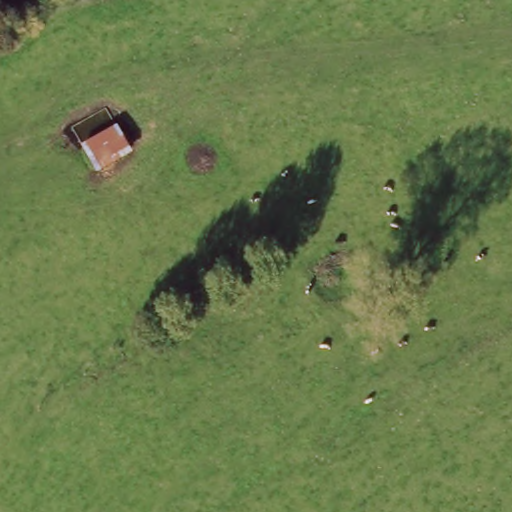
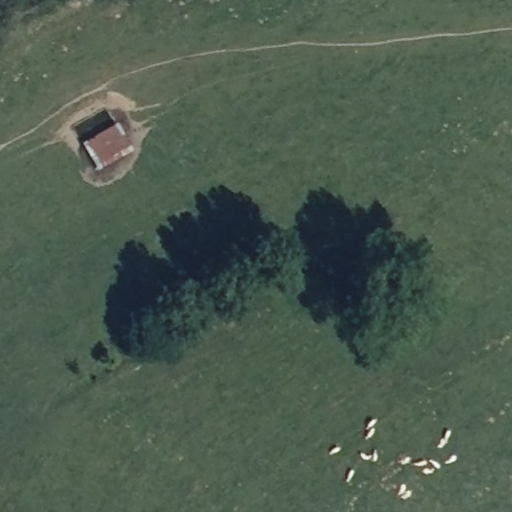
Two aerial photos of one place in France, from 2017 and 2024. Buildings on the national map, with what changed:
unchanged [(95,167),(77,136),(115,121),(127,149),(95,167)]

